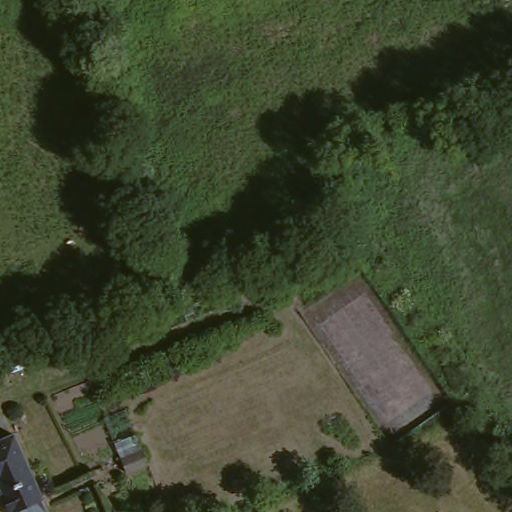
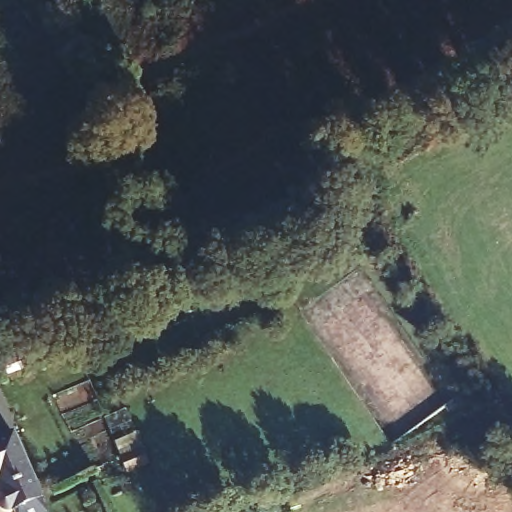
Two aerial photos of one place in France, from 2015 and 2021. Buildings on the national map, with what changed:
unchanged [(18,512),(16,508),(11,510),(7,509),(4,508),(2,505),(1,502),(0,501),(0,496),(2,494),(4,492),(0,484),(0,439),(16,432),(43,496),(50,512),(18,512)]
unchanged [(150,463),(127,473),(121,457),(142,448),(150,463)]

